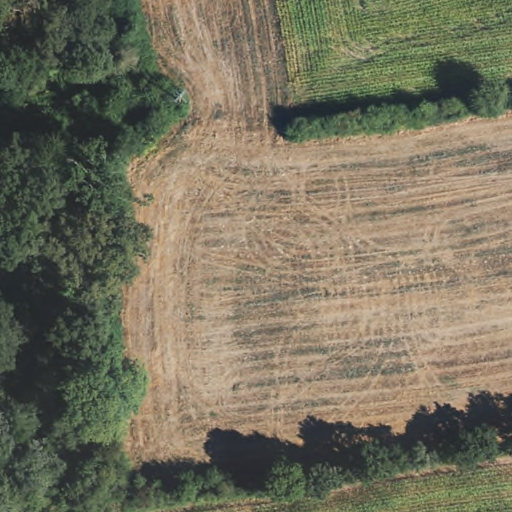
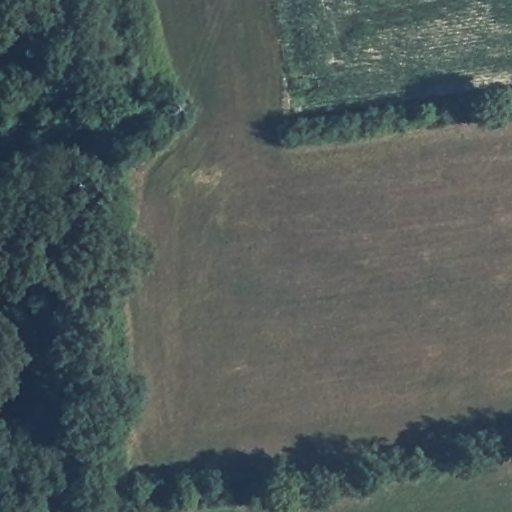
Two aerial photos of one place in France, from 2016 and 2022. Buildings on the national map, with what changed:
[]

